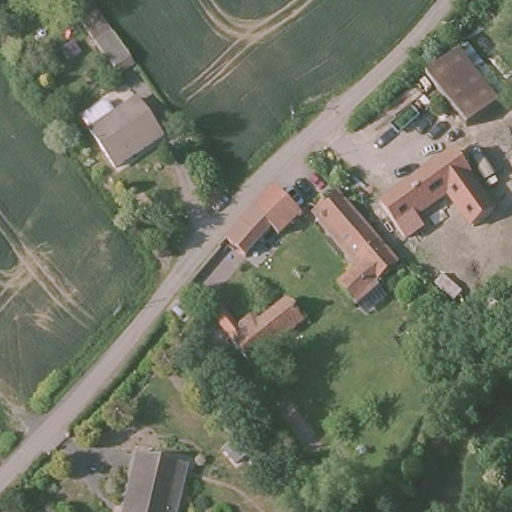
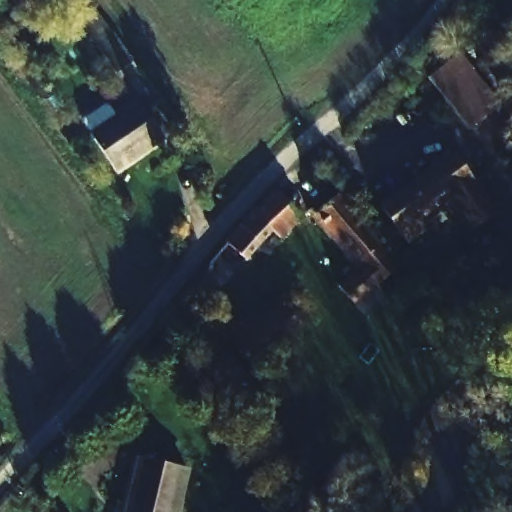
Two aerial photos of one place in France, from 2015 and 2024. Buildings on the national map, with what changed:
unchanged [(138,65),(123,75),(78,13),(95,1),(138,65)]
unchanged [(449,50),(487,101),(456,125),(417,74),(449,50)]
unchanged [(89,126),(90,120),(109,108),(114,108),(122,120),(144,104),(168,138),(121,171),(89,126)]
unchanged [(486,174),(479,167),(394,230),(389,225),(392,220),(385,209),(475,137),(497,165),(486,174)]
unchanged [(241,227),(258,207),(282,185),(306,212),(268,250),(263,246),(224,290),(251,317),(258,310),(267,319),(288,301),(302,315),(296,322),(282,337),(261,359),(259,362),(238,336),(236,334),(236,333),(239,328),(195,281),(241,227)]
unchanged [(354,311),(352,309),(333,290),(364,264),(323,216),(347,192),(359,205),(389,237),(414,263),(354,311)]
unchanged [(149,452),(193,464),(182,512),(136,512),(149,452)]

